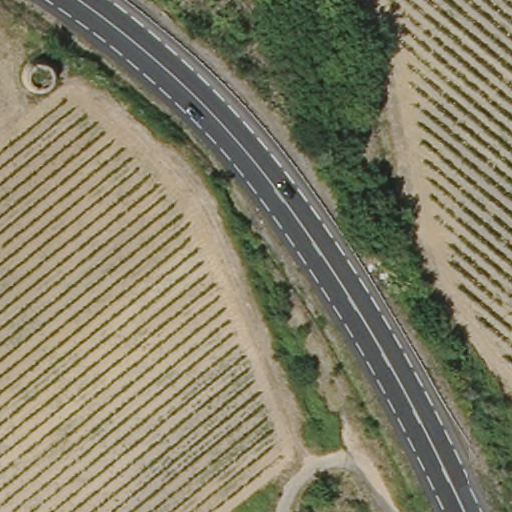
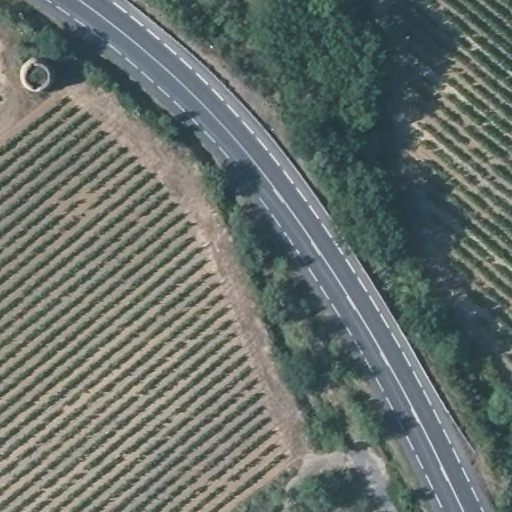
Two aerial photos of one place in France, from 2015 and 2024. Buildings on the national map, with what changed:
unchanged [(53,80),(52,86),(47,92),(42,95),(35,96),(28,95),(22,91),(19,85),(17,79),(20,69),(25,64),(30,60),(37,60),(43,62),(49,66),(52,72),(53,74),(53,80)]

